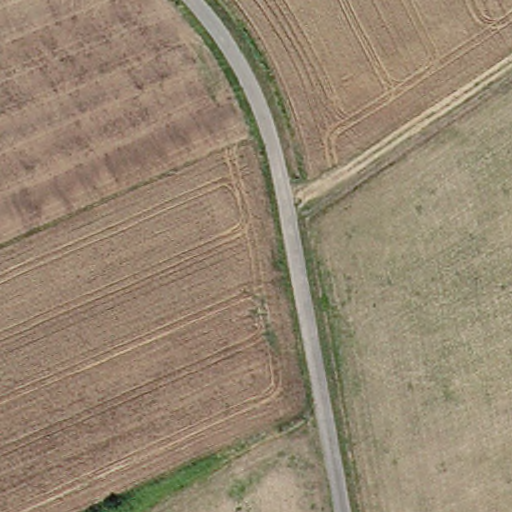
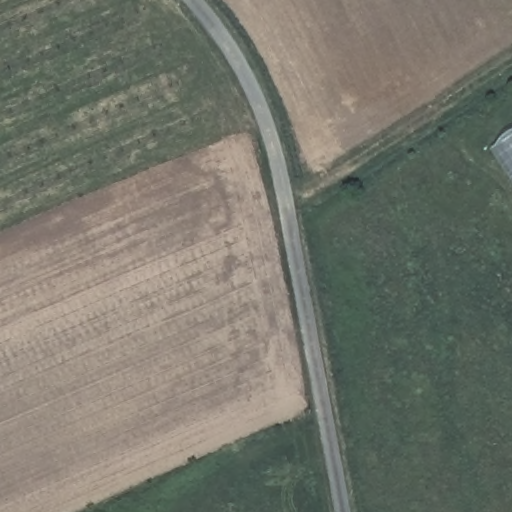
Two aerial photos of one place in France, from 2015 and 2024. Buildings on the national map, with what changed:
new [(512,136),(512,174),(495,147),(512,136)]

